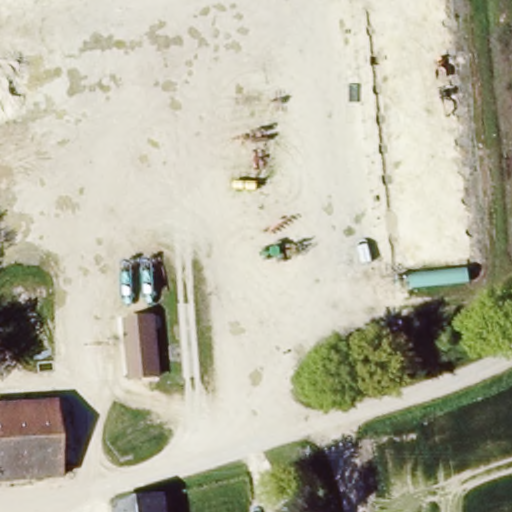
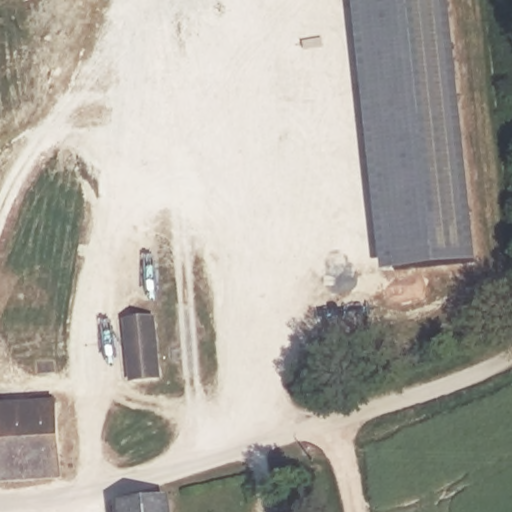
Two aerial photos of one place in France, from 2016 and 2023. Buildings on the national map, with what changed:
new [(352,0),(448,0),(476,260),(381,272),(352,0)]
demolished [(458,0),(484,272),(385,277),(358,0),(458,0)]
unchanged [(123,317),(155,315),(160,378),(129,382),(123,317)]
unchanged [(63,483),(0,486),(0,405),(58,403),(63,483)]
unchanged [(179,512),(113,512),(112,504),(176,489),(179,512)]

